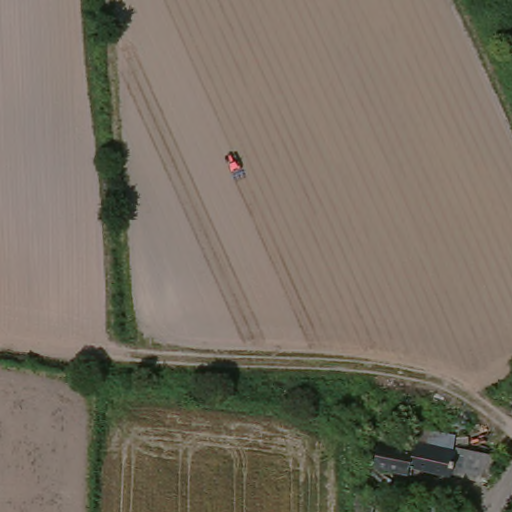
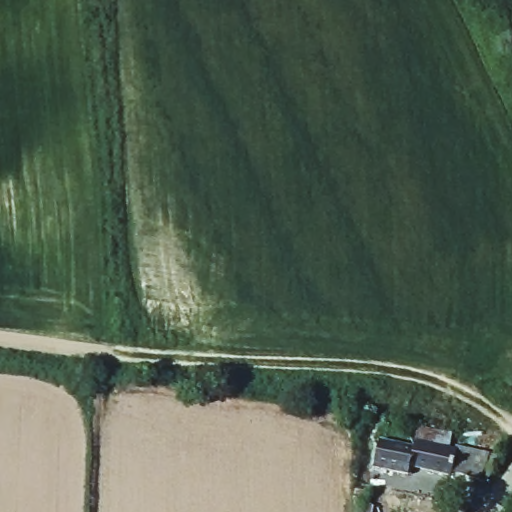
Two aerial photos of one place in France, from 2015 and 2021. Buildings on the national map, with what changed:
unchanged [(481,477),(371,464),(375,434),(431,442),(432,429),(460,432),(458,443),(483,446),(481,477)]

